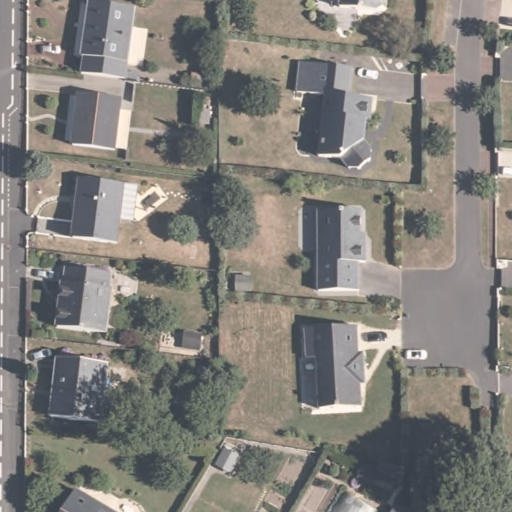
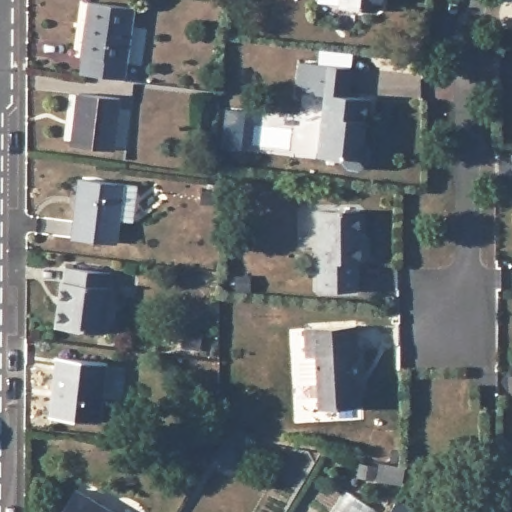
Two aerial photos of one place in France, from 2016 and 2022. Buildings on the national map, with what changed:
unchanged [(86,50),(82,50),(89,0),(103,0),(133,5),(124,70),(84,65),(86,50)]
unchanged [(386,5),(380,9),(343,4),(343,0),(386,0),(386,5)]
unchanged [(317,91),(299,89),(303,60),(320,62),(354,66),(351,95),(375,97),(372,120),(368,120),(366,139),(373,149),(372,159),(360,167),(350,166),(343,157),(320,154),(327,92),(317,91)]
unchanged [(113,145),(69,140),(77,85),(121,91),(113,145)]
unchanged [(70,231),(75,175),(123,181),(138,184),(132,222),(118,220),(115,236),(70,231)]
unchanged [(361,210),(360,244),(365,244),(365,262),(358,261),(357,290),(317,290),(319,209),(361,210)]
unchanged [(104,285),(107,286),(101,328),(58,321),(66,267),(105,272),(104,285)]
unchanged [(361,325),(362,352),(367,352),(367,372),(361,372),(361,382),(363,382),(363,406),(321,407),(320,355),(310,355),(309,326),(361,325)]
unchanged [(95,417),(49,411),(56,355),(103,360),(95,417)]
unchanged [(374,494),(381,480),(358,478),(360,460),(409,467),(409,475),(396,496),(398,498),(419,510),(418,512),(386,512),(391,505),(392,503),(374,494)]
unchanged [(63,512),(78,490),(114,512),(63,512)]

